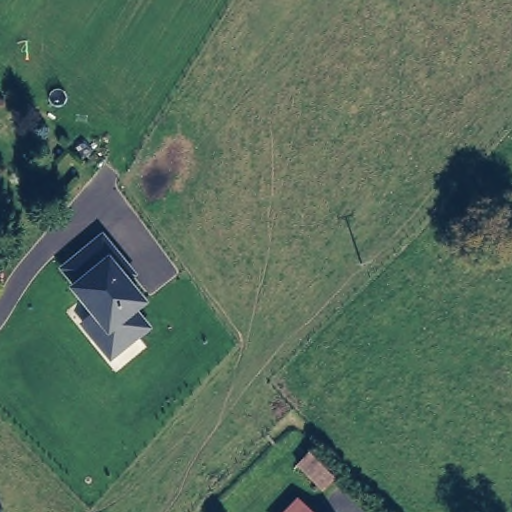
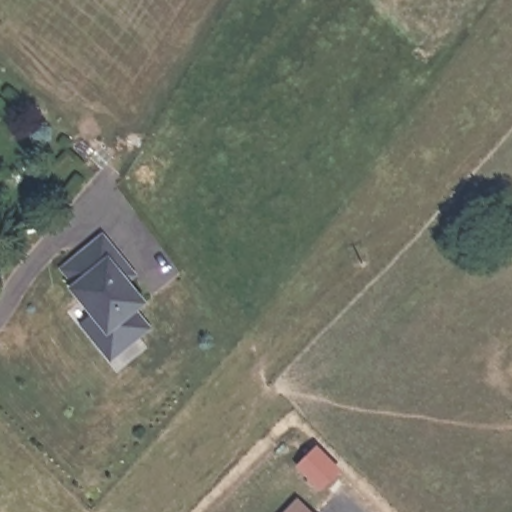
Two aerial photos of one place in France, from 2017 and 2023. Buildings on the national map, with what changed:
unchanged [(137,275),(130,282),(147,303),(138,312),(152,329),(110,362),(79,323),(90,315),(68,288),(72,285),(58,267),(102,233),(137,275)]
unchanged [(310,512),(289,512),(300,501),(310,512)]

